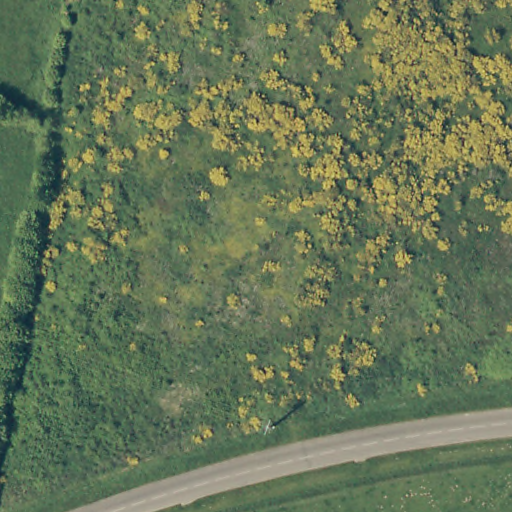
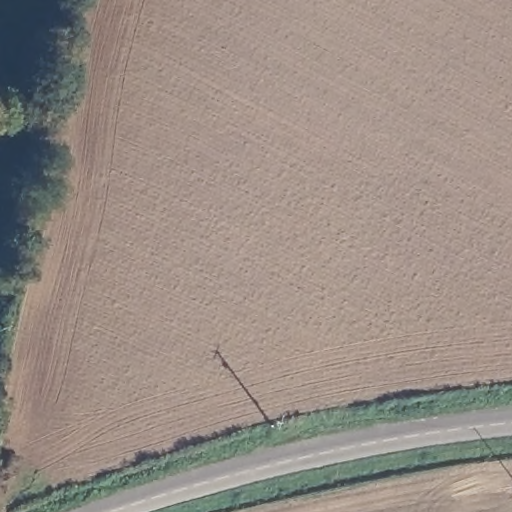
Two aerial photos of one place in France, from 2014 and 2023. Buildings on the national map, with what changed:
[]

